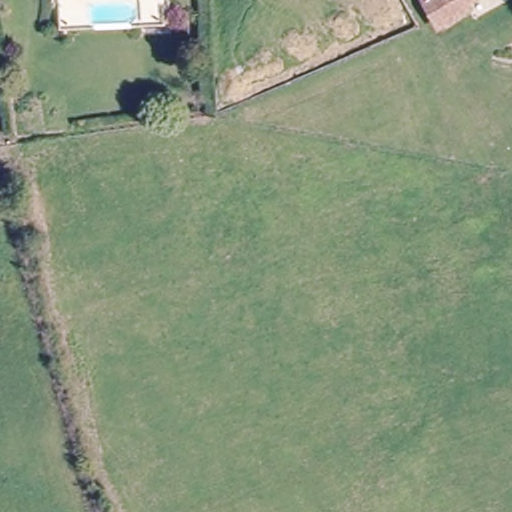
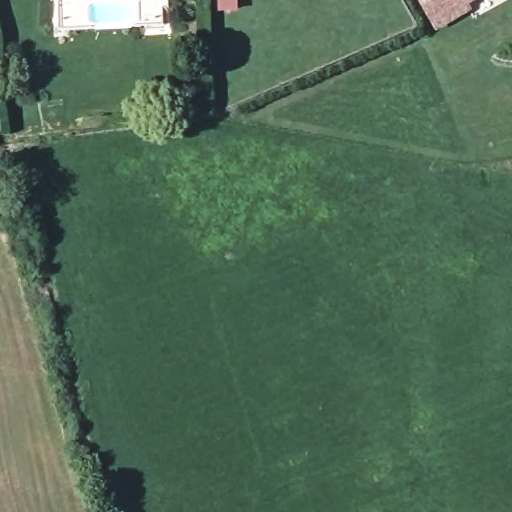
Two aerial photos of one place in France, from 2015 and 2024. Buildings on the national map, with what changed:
unchanged [(468,8),(436,25),(423,0),(463,0),(464,1),(468,8)]
unchanged [(464,1),(463,0),(466,0),(464,1)]

